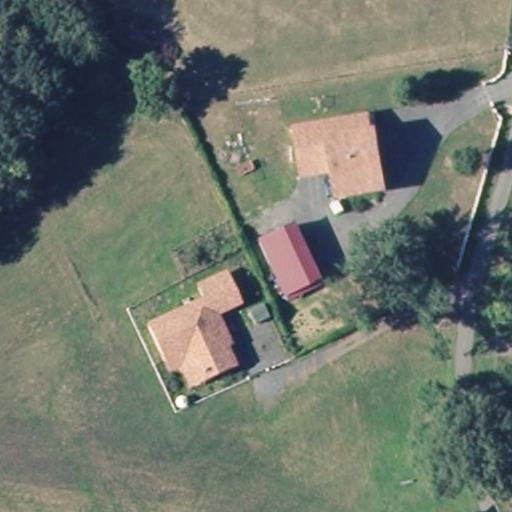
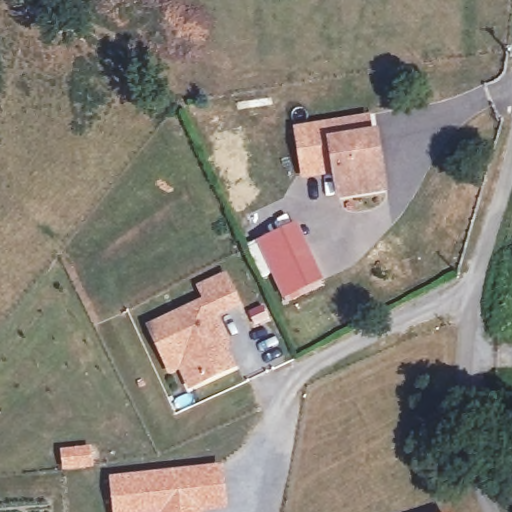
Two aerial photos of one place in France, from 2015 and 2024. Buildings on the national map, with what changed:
unchanged [(340,205),(336,179),(305,182),(299,135),(333,131),(371,127),(374,144),(375,143),(376,144),(377,145),(383,200),(340,205)]
unchanged [(282,304),(258,248),(280,239),(295,232),(319,287),(313,290),(282,304)]
unchanged [(178,372),(169,377),(153,347),(144,335),(200,306),(193,291),(217,280),(231,308),(210,320),(220,338),(215,341),(229,370),(198,386),(187,391),(178,372)]
new [(89,446),(92,467),(62,471),(59,450),(89,446)]
new [(227,509),(206,512),(111,512),(108,477),(222,464),(227,509)]

